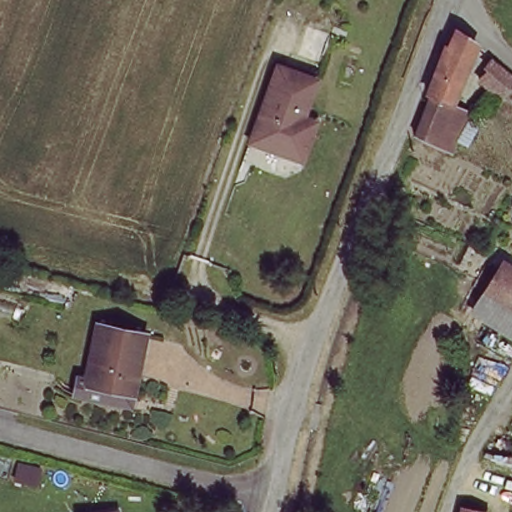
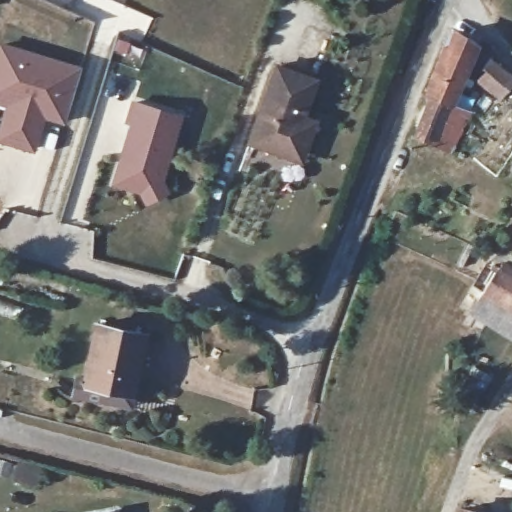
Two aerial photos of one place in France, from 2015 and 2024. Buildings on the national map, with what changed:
unchanged [(450,144),(437,138),(415,127),(432,86),(429,84),(447,36),(450,37),(453,27),(479,38),(446,116),(459,122),(450,144)]
new [(9,103),(0,101),(0,44),(80,67),(67,113),(43,107),(30,147),(0,139),(0,134),(9,103)]
unchanged [(478,72),(495,49),(512,64),(512,80),(502,91),(478,72)]
unchanged [(306,155),(293,151),(254,137),(278,60),(319,74),(307,109),(320,115),(306,155)]
new [(132,122),(127,119),(132,101),(178,114),(159,181),(140,191),(113,182),(132,122)]
unchanged [(497,301),(484,293),(497,269),(512,279),(512,332),(488,316),(497,301)]
new [(132,407),(70,395),(73,373),(82,374),(93,323),(102,324),(88,386),(133,396),(132,407)]
unchanged [(147,336),(133,396),(88,386),(102,324),(147,336)]
unchanged [(117,512),(110,512),(117,510),(117,512)]
unchanged [(474,512),(462,512),(462,510),(474,512)]

